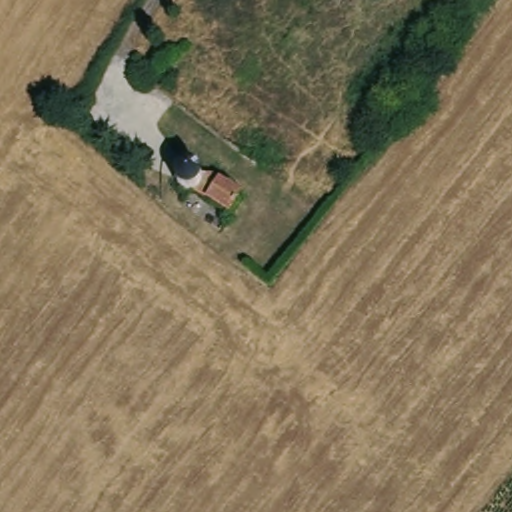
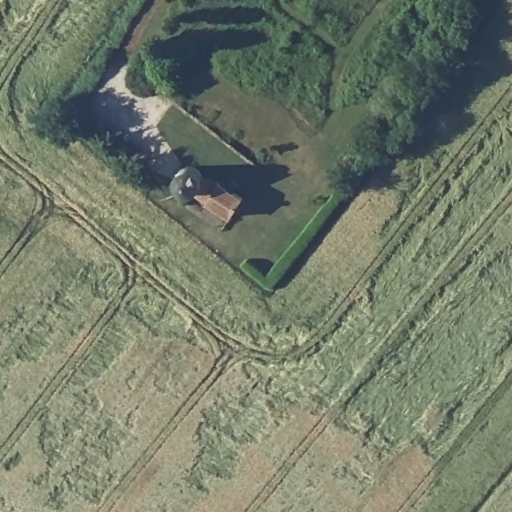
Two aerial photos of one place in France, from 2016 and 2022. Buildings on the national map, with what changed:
unchanged [(198,189),(192,194),(183,192),(175,181),(183,168),(198,174),(198,189)]

